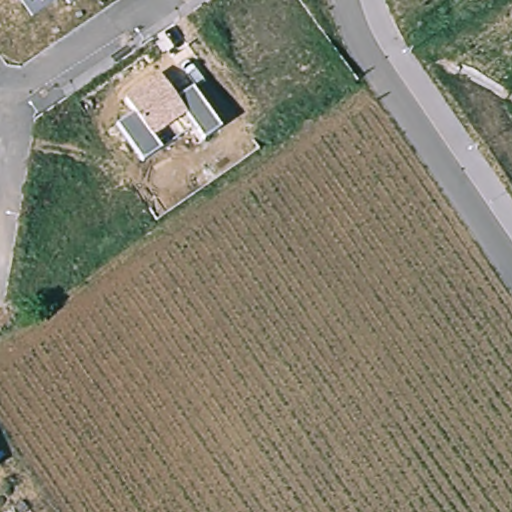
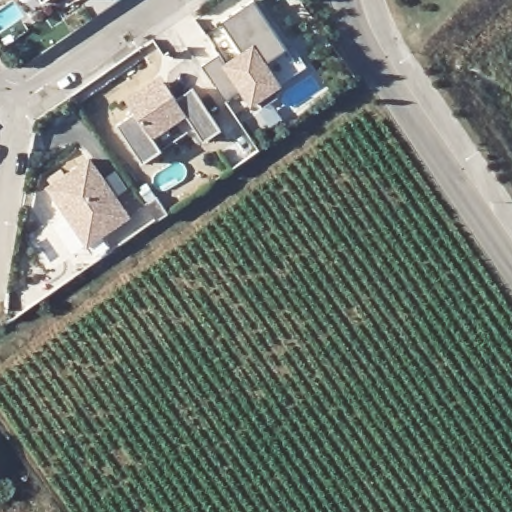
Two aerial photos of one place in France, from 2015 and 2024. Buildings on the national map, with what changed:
unchanged [(42,0),(43,0),(43,1),(42,0)]
new [(220,53),(227,64),(243,53),(222,22),(254,0),(302,70),(252,104),(242,90),(226,101),(202,65),(220,53)]
unchanged [(204,140),(187,115),(154,137),(162,148),(143,160),(118,123),(134,112),(126,100),(161,75),(176,98),(193,87),(222,128),(204,140)]
new [(87,155),(126,213),(84,242),(45,184),(87,155)]

